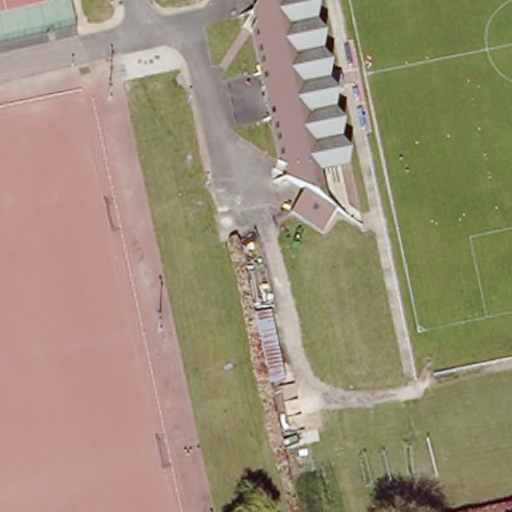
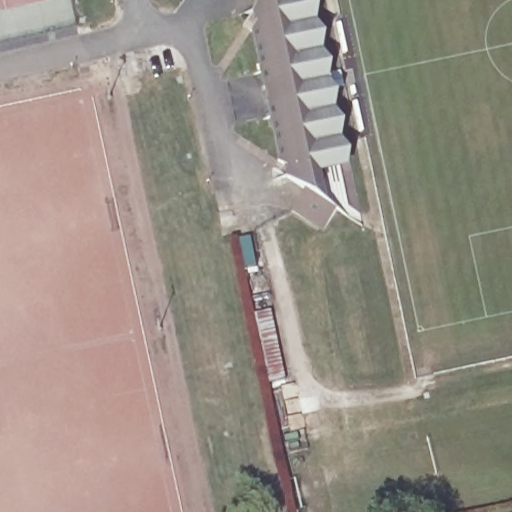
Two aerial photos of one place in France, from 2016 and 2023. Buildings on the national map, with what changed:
unchanged [(307,189),(289,177),(286,163),(283,163),(272,110),(262,111),(261,105),(271,103),(267,86),(258,88),(257,81),(265,79),(253,28),(257,27),(254,12),(260,4),(259,0),(305,0),(330,123),(350,218),(339,210),(324,232),(294,210),(307,189)]

